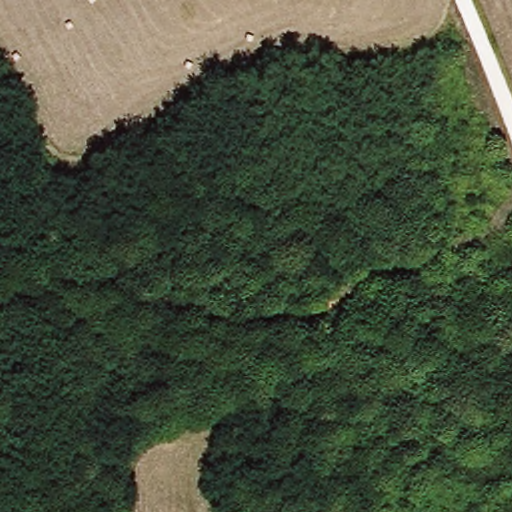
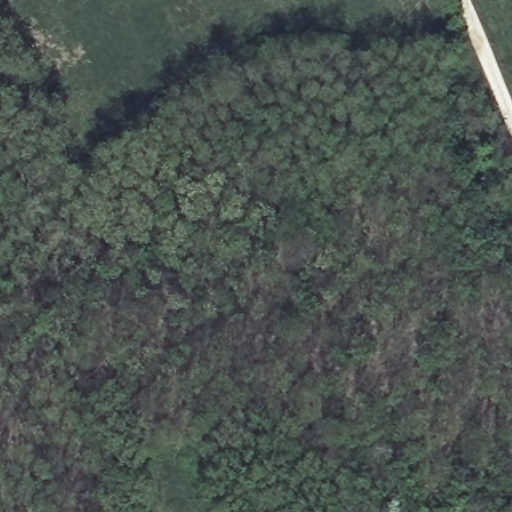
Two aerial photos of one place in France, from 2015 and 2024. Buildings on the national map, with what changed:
[]

